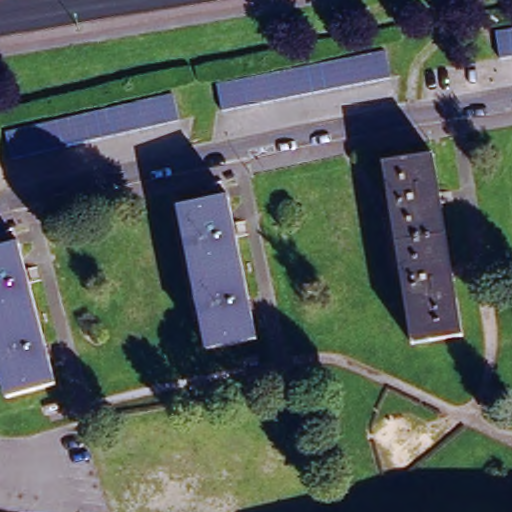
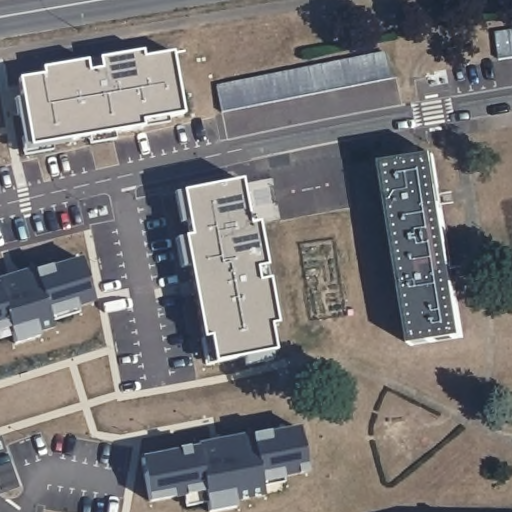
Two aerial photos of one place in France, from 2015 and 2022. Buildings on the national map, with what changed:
unchanged [(496,32),(512,29),(512,57),(500,59),(496,32)]
new [(141,119),(141,126),(32,143),(19,77),(44,73),(43,66),(86,60),(87,70),(101,67),(100,58),(142,51),(142,57),(172,52),(181,113),(141,119)]
unchanged [(310,97),(290,101),(221,115),(216,88),(385,55),(390,82),(310,97)]
demolished [(155,130),(87,146),(63,152),(10,165),(2,139),(169,98),(175,125),(155,130)]
unchanged [(434,156),(464,337),(413,345),(381,165),(434,156)]
new [(241,178),(249,223),(258,221),(267,265),(257,267),(259,280),(269,278),(277,323),(270,325),(274,350),(215,361),(209,335),(204,336),(184,236),(191,235),(183,191),(241,178)]
demolished [(222,202),(255,343),(206,353),(174,213),(222,202)]
demolished [(14,247),(55,386),(5,400),(0,384),(0,251),(14,247)]
new [(77,307),(79,311),(51,320),(53,327),(39,331),(40,335),(15,343),(12,331),(0,335),(0,276),(34,265),(36,269),(51,265),(81,257),(94,301),(77,307)]
new [(309,472),(298,474),(283,477),(283,483),(261,487),(263,495),(236,500),(237,505),(209,511),(207,501),(187,505),(186,494),(174,497),(174,494),(151,500),(141,456),(179,447),(190,446),(197,445),(197,442),(252,432),(253,433),(269,430),(299,425),(309,472)]

